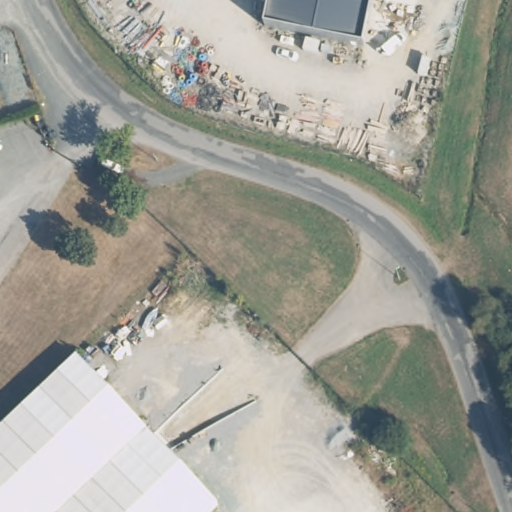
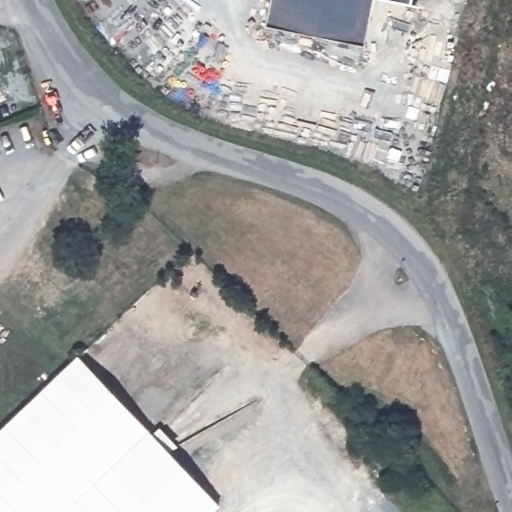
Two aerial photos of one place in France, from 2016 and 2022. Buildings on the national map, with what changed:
unchanged [(361,46),(262,25),(267,0),(371,0),(361,46)]
unchanged [(407,5),(386,0),(408,0),(407,5)]
unchanged [(79,358),(218,504),(210,512),(0,512),(0,430),(79,358)]

